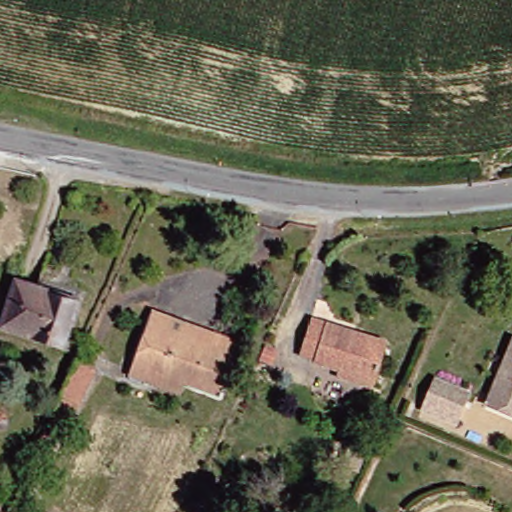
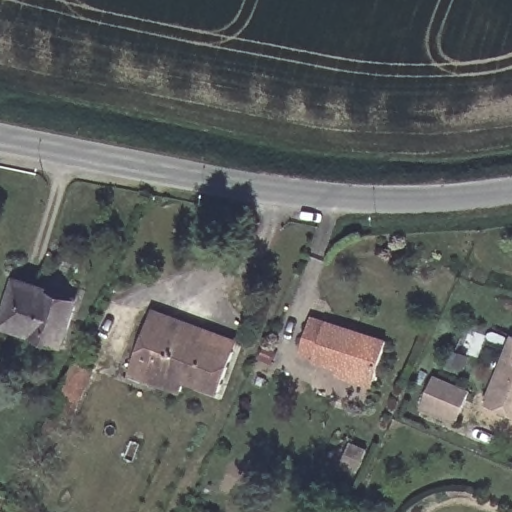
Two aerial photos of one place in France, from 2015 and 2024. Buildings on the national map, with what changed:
unchanged [(77,300),(60,341),(2,320),(18,279),(77,300)]
unchanged [(157,378),(136,370),(159,304),(179,310),(210,320),(206,330),(239,341),(224,384),(189,373),(184,387),(157,378)]
unchanged [(335,380),(338,370),(302,357),(315,319),(389,343),(377,380),(373,393),(335,380)]
unchanged [(508,408),(484,398),(512,336),(512,410),(508,408)]
unchanged [(76,413),(65,408),(48,445),(39,440),(63,390),(76,356),(100,367),(76,413)]
unchanged [(472,390),(460,416),(427,403),(438,376),(472,390)]
unchanged [(367,450),(357,471),(340,462),(351,442),(367,450)]

